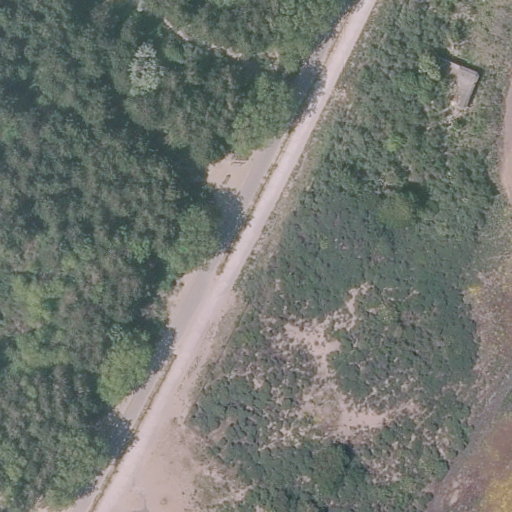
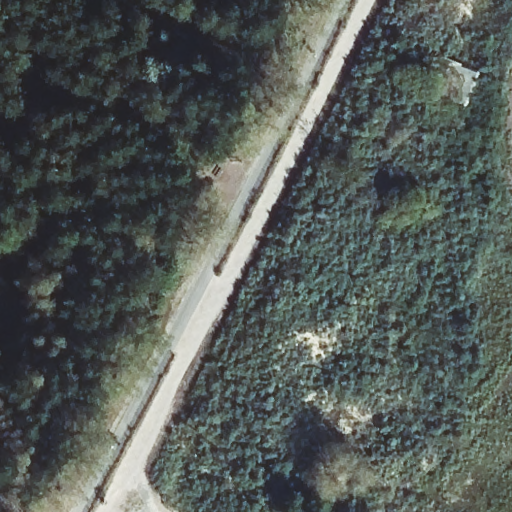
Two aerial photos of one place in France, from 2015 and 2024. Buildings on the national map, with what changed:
unchanged [(480,74),(464,112),(421,96),(437,54),(480,74)]

